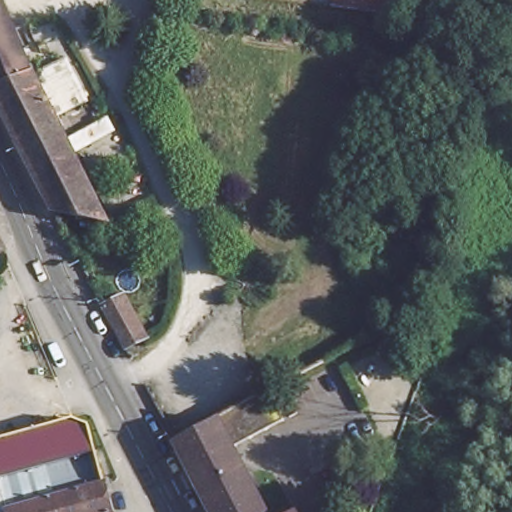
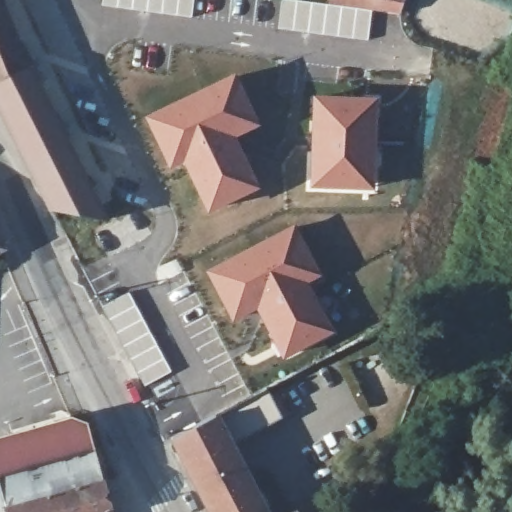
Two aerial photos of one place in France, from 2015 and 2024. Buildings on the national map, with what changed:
unchanged [(0,78),(0,0),(19,46),(41,35),(53,58),(0,78)]
new [(101,0),(194,0),(192,17),(101,5),(101,0)]
unchanged [(396,11),(332,2),(332,0),(398,0),(396,11)]
unchanged [(71,93),(48,105),(50,110),(61,105),(69,121),(59,126),(101,212),(100,228),(57,226),(22,153),(0,104),(0,78),(53,58),(71,93)]
new [(233,73),(261,127),(238,138),(261,187),(207,215),(182,165),(170,170),(143,116),(233,73)]
new [(312,95),(379,97),(375,192),(308,189),(312,95)]
demolished [(104,149),(99,152),(98,149),(95,151),(92,145),(99,141),(104,149)]
new [(296,222),(324,276),(310,283),(336,332),(281,360),(256,311),(232,323),(203,270),(296,222)]
unchanged [(4,246),(0,247),(0,238),(4,246)]
new [(128,292),(172,371),(144,387),(101,306),(128,292)]
demolished [(140,336),(120,347),(96,304),(117,293),(140,336)]
unchanged [(232,441),(268,512),(213,512),(174,435),(190,427),(269,384),(283,413),(232,441)]
unchanged [(71,417),(88,425),(112,512),(0,512),(0,438),(71,417)]
unchanged [(298,512),(286,512),(296,507),(298,512)]

